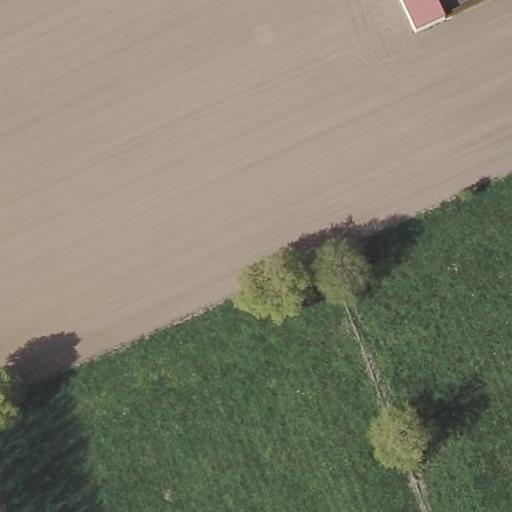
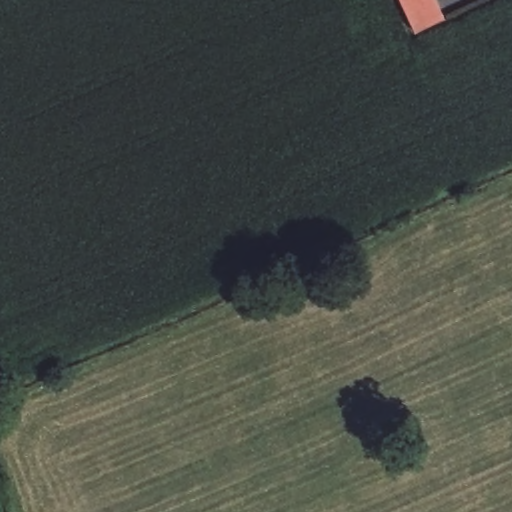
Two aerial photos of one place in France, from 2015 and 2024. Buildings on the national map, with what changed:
unchanged [(447,21),(418,34),(402,0),(437,0),(447,21)]

